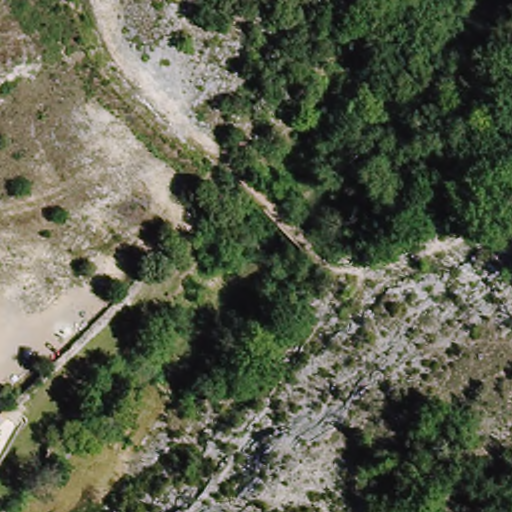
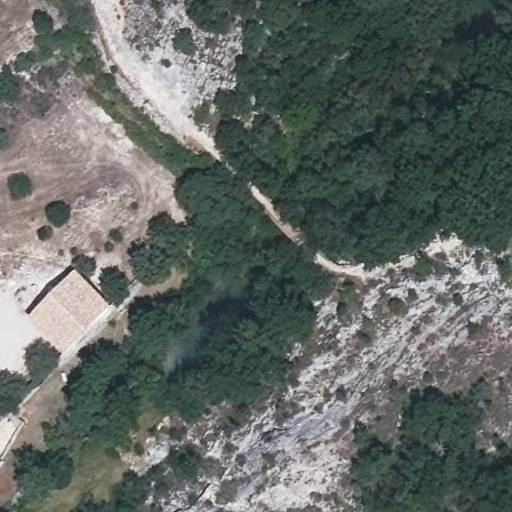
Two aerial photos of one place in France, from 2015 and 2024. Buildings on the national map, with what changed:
new [(76,268),(113,306),(65,354),(28,316),(76,268)]
unchanged [(0,423),(0,421),(1,422),(0,423)]
demolished [(38,457),(15,484),(0,473),(0,428),(27,447),(38,457)]

